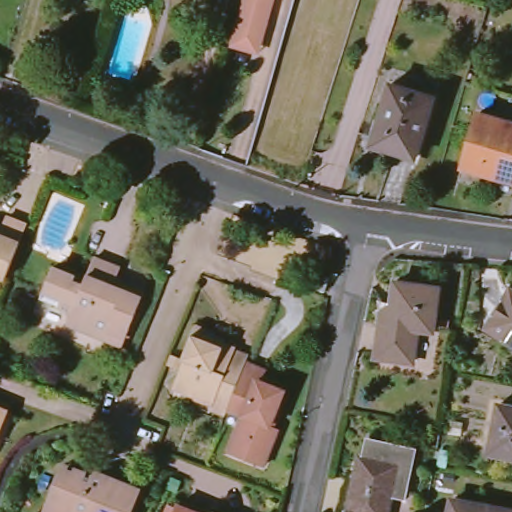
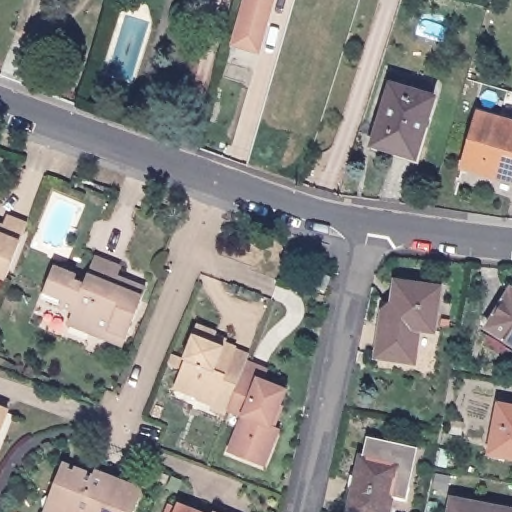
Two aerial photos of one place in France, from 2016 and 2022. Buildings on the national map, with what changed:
unchanged [(230,48),(231,42),(243,0),(275,0),(260,50),(259,56),(230,48)]
unchanged [(374,144),(392,84),(435,96),(417,157),(374,144)]
unchanged [(464,166),(479,113),(512,123),(512,180),(464,166)]
unchanged [(0,274),(0,224),(7,227),(10,216),(29,223),(7,277),(0,274)]
unchanged [(57,307),(60,300),(40,292),(51,267),(73,276),(71,281),(80,285),(92,259),(119,270),(112,286),(122,290),(126,281),(144,287),(124,336),(107,329),(92,334),(65,324),(70,312),(57,307)]
unchanged [(308,286),(312,272),(320,275),(315,288),(308,286)]
unchanged [(371,354),(377,308),(382,306),(389,307),(394,280),(445,288),(438,330),(420,328),(415,361),(371,354)]
unchanged [(487,328),(512,289),(512,343),(487,328)]
unchanged [(239,355),(220,403),(219,408),(206,403),(210,393),(199,388),(197,391),(172,381),(184,354),(180,353),(194,320),(212,328),(210,337),(217,341),(219,337),(231,342),(230,345),(241,349),(239,355)]
unchanged [(245,456),(220,447),(235,409),(220,403),(239,355),(258,363),(254,375),(272,382),(267,398),(269,399),(264,413),(261,412),(259,419),(265,421),(257,443),(252,458),(245,456)]
unchanged [(490,454),(499,406),(512,408),(512,457),(490,454)]
unchanged [(0,421),(0,411),(4,412),(0,421)]
unchanged [(357,449),(363,451),(367,433),(419,446),(410,481),(397,478),(390,512),(381,512),(345,503),(357,449)]
unchanged [(133,512),(44,512),(39,510),(65,452),(145,481),(133,512)]
unchanged [(512,511),(512,512),(450,512),(452,501),(512,511)]
unchanged [(194,510),(195,506),(212,512),(175,512),(179,504),(194,510)]

